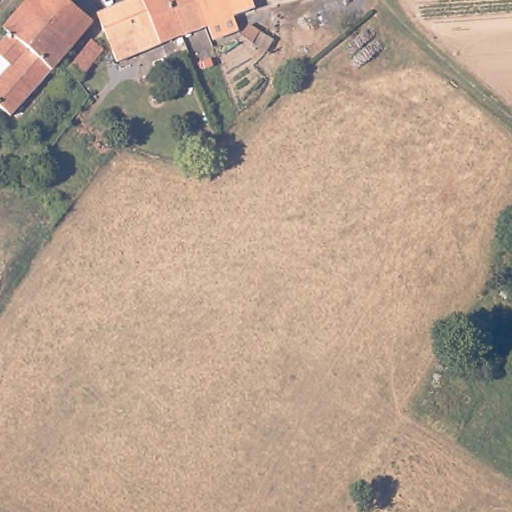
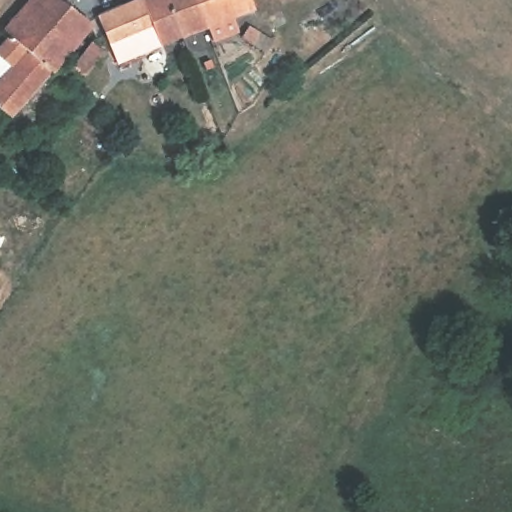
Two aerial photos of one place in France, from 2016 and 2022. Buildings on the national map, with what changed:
unchanged [(65,70),(60,65),(14,119),(0,107),(0,45),(7,36),(1,31),(28,0),(73,0),(69,5),(91,25),(79,38),(87,46),(65,70)]
unchanged [(106,13),(136,0),(145,0),(162,49),(124,64),(106,13)]
unchanged [(162,49),(145,0),(176,0),(191,36),(162,49)]
unchanged [(176,0),(200,0),(210,29),(191,36),(176,0)]
unchanged [(230,20),(210,29),(200,0),(250,0),(226,9),(230,20)]
unchanged [(231,41),(239,30),(259,41),(251,54),(231,41)]

